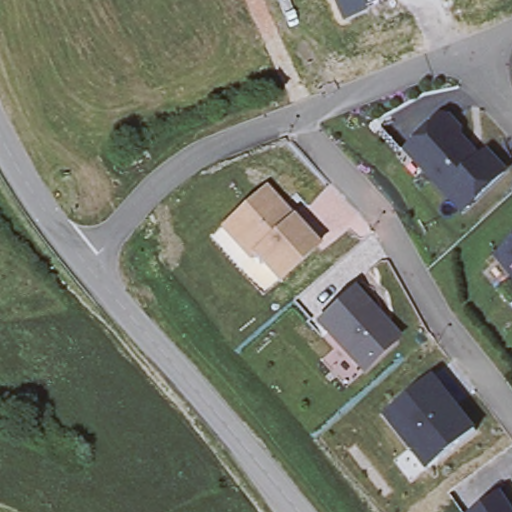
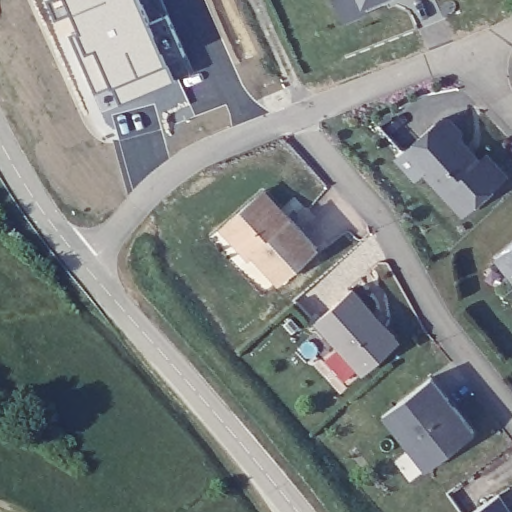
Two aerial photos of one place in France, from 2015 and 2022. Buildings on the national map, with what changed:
new [(175,82),(120,106),(112,88),(95,96),(71,38),(76,36),(62,0),(137,0),(175,82)]
unchanged [(343,22),(335,0),(384,0),(368,7),(370,11),(343,22)]
unchanged [(409,151),(444,119),(452,120),(462,131),(462,139),(482,162),(489,155),(507,174),(465,213),(409,151)]
unchanged [(212,232),(223,223),(265,183),(319,241),(280,277),(255,249),(250,253),(240,262),(212,232)]
unchanged [(512,245),(512,274),(498,257),(512,245)]
unchanged [(318,322),(354,289),(397,336),(397,343),(364,372),(318,322)]
unchanged [(428,470),(385,415),(433,377),(477,432),(428,470)]
unchanged [(512,510),(512,512),(474,512),(501,494),(512,510)]

